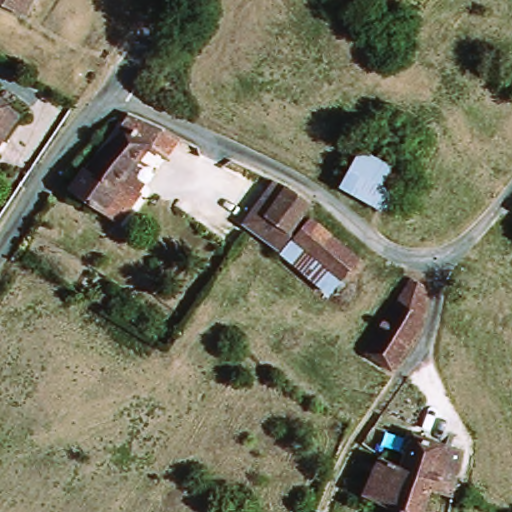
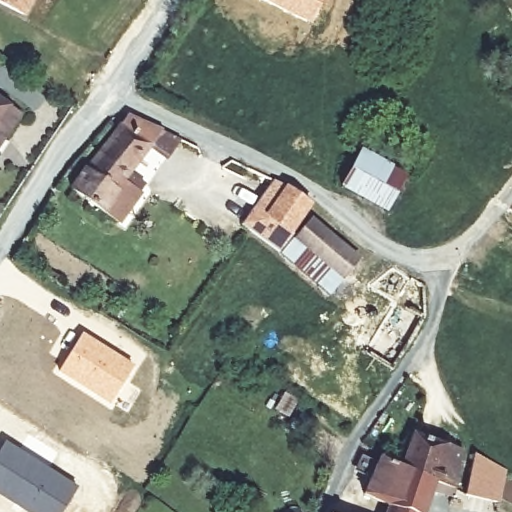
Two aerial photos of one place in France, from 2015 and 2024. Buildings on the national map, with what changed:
unchanged [(38,0),(27,20),(0,6),(0,0),(38,0)]
new [(264,0),(324,0),(311,24),(264,0)]
unchanged [(34,123),(16,152),(7,165),(0,160),(0,101),(34,123)]
unchanged [(126,229),(121,227),(73,203),(108,137),(120,116),(155,129),(129,176),(145,184),(142,188),(139,194),(145,196),(126,229)]
unchanged [(390,228),(331,199),(356,143),(415,172),(390,228)]
unchanged [(242,224),(275,179),(287,187),(312,205),(291,232),(297,238),(313,216),(362,259),(345,280),(331,296),(242,224)]
new [(425,317),(394,368),(370,354),(412,279),(424,287),(425,317)]
demolished [(417,329),(400,356),(391,371),(367,354),(407,292),(413,297),(417,329)]
new [(82,330),(136,364),(109,406),(55,371),(82,330)]
unchanged [(452,489),(405,466),(417,435),(466,452),(452,489)]
new [(5,438),(78,484),(61,512),(27,512),(0,494),(0,446),(5,438)]
new [(476,453),(507,471),(500,501),(467,494),(476,453)]
unchanged [(447,504),(430,497),(424,512),(388,512),(388,510),(365,499),(384,456),(405,466),(452,489),(447,504)]
unchanged [(343,501),(360,512),(338,512),(343,501)]

